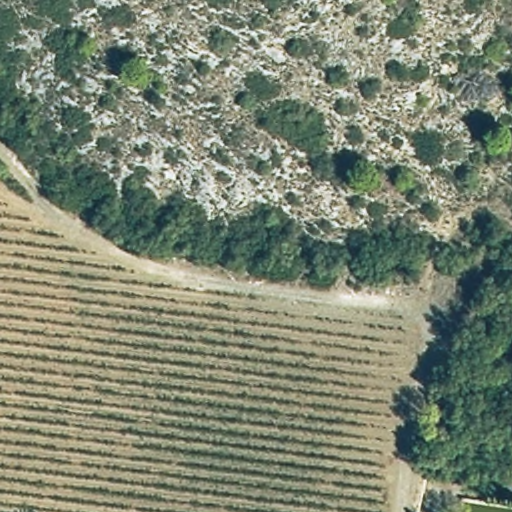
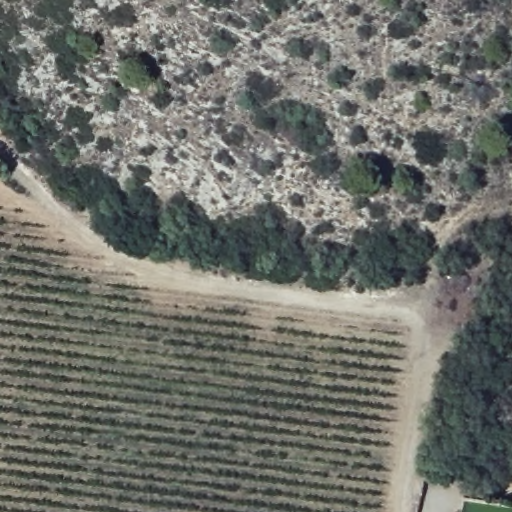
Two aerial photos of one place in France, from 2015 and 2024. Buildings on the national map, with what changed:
unchanged [(512,472),(512,496),(504,495),(509,472),(512,472)]

